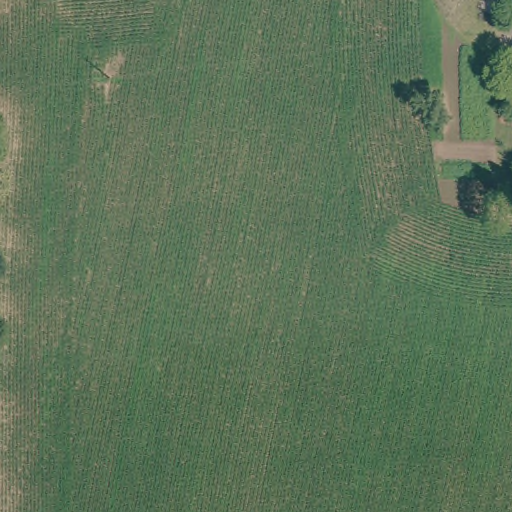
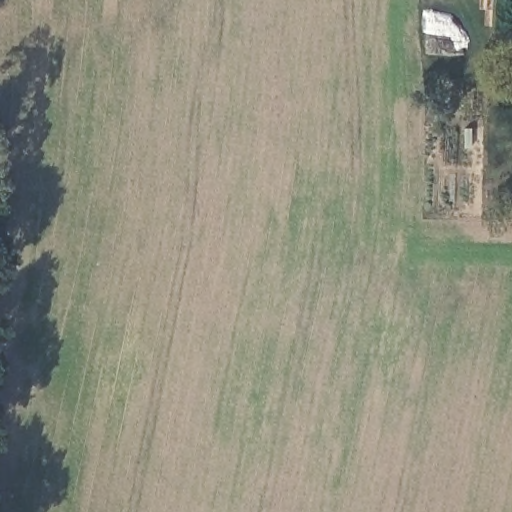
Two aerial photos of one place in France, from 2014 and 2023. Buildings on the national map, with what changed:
[]

